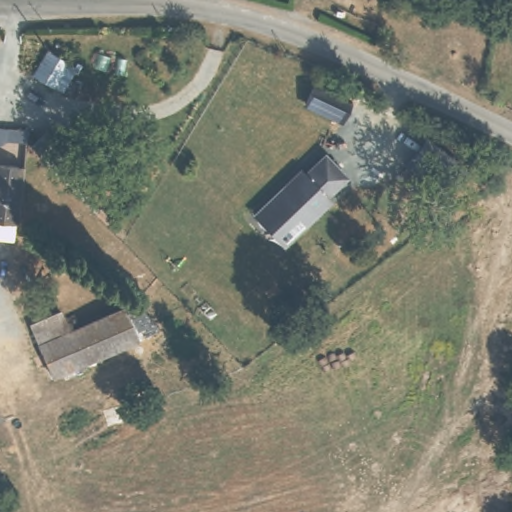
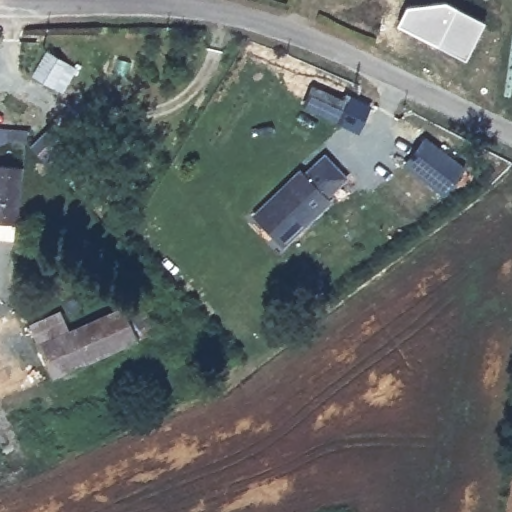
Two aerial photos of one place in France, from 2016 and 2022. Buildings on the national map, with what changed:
new [(484,21),(466,58),(398,24),(406,6),(446,2),(484,21)]
unchanged [(61,64),(52,91),(35,86),(44,59),(61,64)]
unchanged [(411,132),(449,158),(430,186),(392,160),(411,132)]
unchanged [(32,141),(30,152),(8,149),(9,138),(32,141)]
unchanged [(57,179),(50,172),(35,157),(55,138),(69,152),(76,159),(57,179)]
unchanged [(258,225),(264,217),(297,178),(300,181),(319,157),(343,178),(324,201),(327,203),(294,242),(288,250),(258,225)]
unchanged [(21,230),(0,229),(0,169),(28,172),(22,218),(21,230)]
unchanged [(136,347),(48,376),(31,323),(62,311),(71,331),(124,312),(136,347)]

